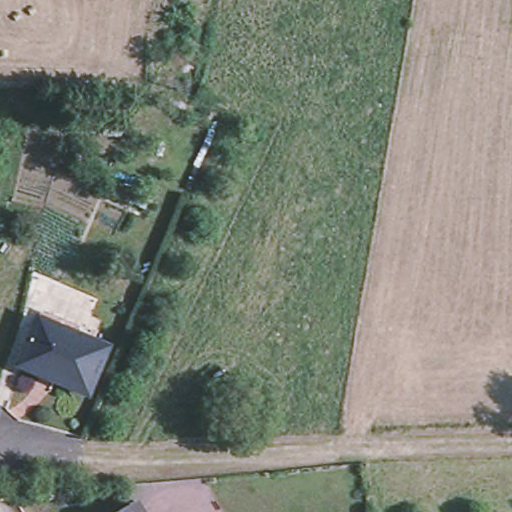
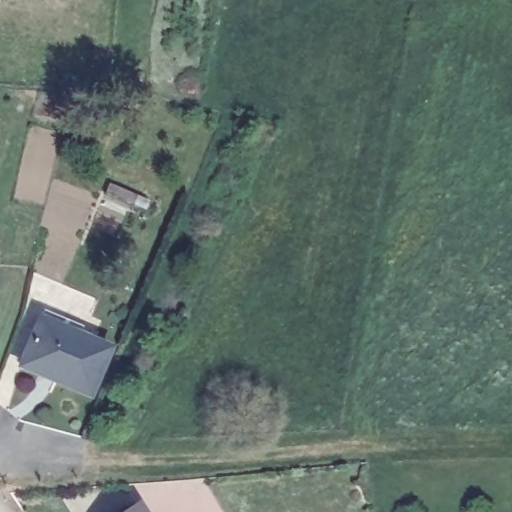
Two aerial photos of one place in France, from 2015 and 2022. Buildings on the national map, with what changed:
unchanged [(90,391),(75,384),(24,362),(45,314),(92,337),(110,344),(90,391)]
unchanged [(135,501),(143,512),(115,512),(135,501)]

